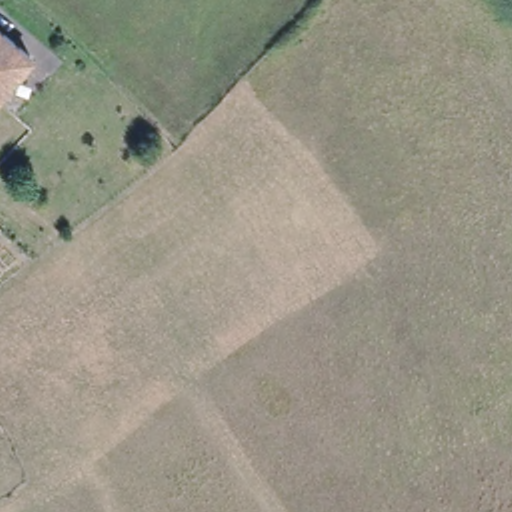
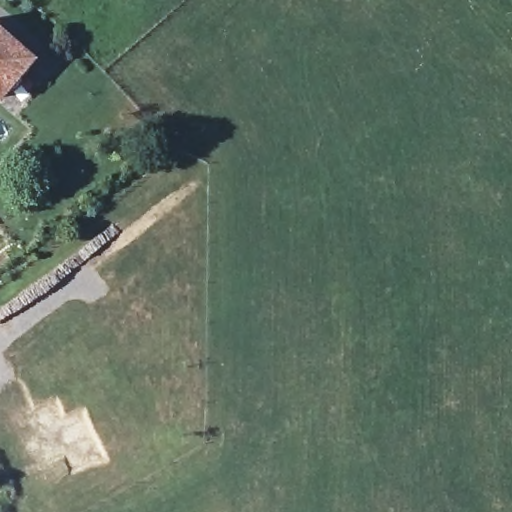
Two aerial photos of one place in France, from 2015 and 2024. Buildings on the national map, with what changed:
unchanged [(3,101),(0,99),(0,28),(36,58),(3,101)]

